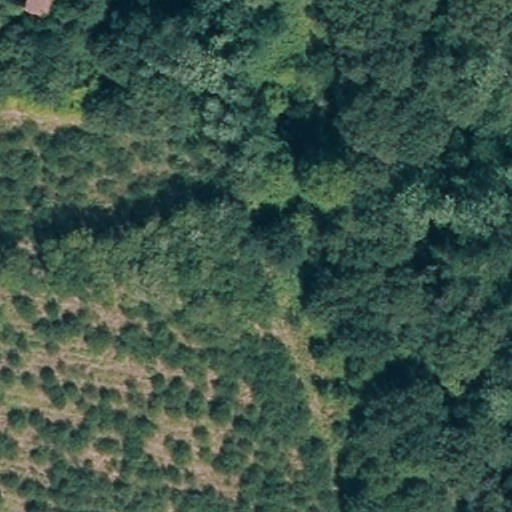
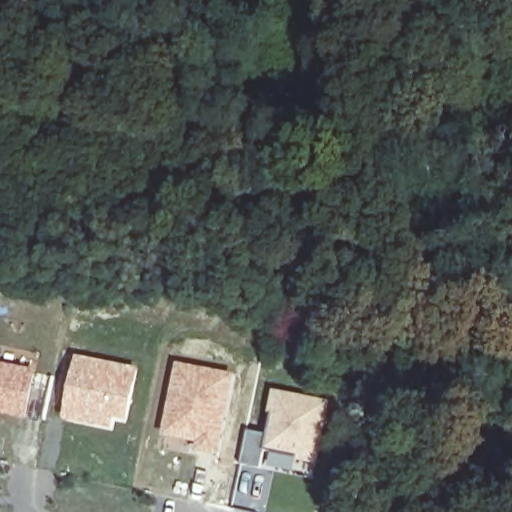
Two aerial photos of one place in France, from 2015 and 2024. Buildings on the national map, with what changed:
demolished [(50,11),(12,0),(53,0),(50,11)]
new [(76,355),(140,368),(128,425),(114,422),(112,432),(61,421),(76,355)]
new [(37,370),(26,420),(0,414),(0,361),(37,370)]
new [(175,362),(236,375),(219,459),(157,448),(175,362)]
new [(266,433),(272,389),(332,402),(317,465),(306,461),(305,467),(296,466),(294,475),(261,470),(239,468),(246,430),(266,433)]

